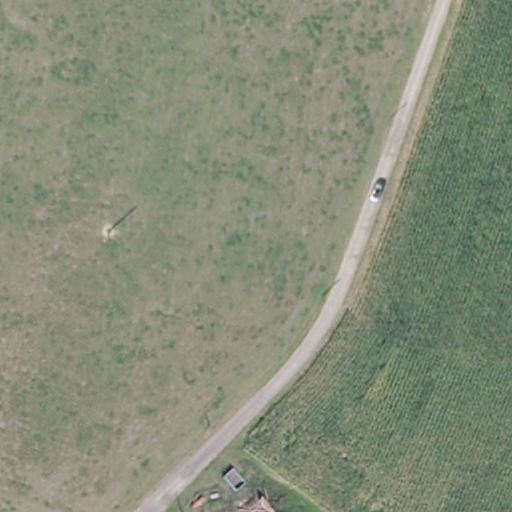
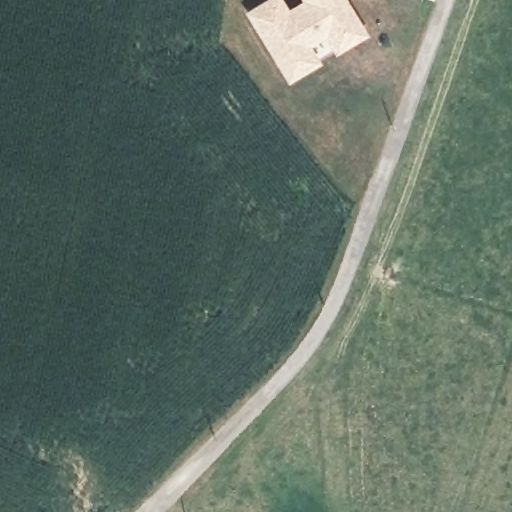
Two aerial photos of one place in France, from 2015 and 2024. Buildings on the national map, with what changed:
new [(335,53),(325,34),(310,43),(322,60),(290,81),(246,8),(259,0),(286,0),(288,5),(298,0),(349,0),(368,33),(335,53)]
demolished [(255,494),(269,512),(231,512),(255,494)]

